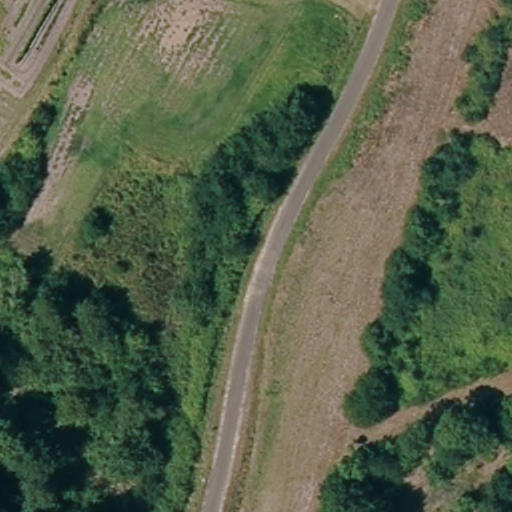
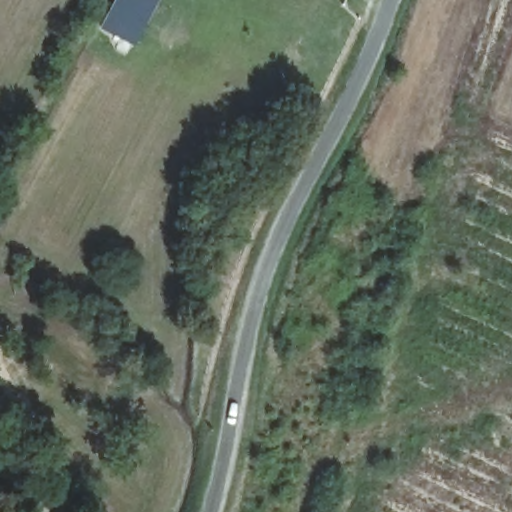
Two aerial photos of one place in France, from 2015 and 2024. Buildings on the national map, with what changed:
new [(101,29),(117,0),(159,0),(134,46),(101,29)]

